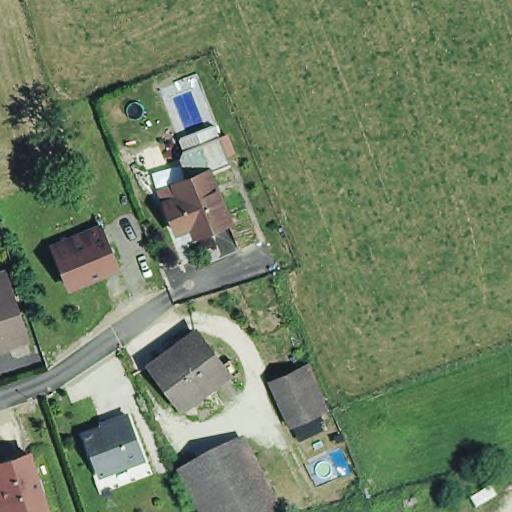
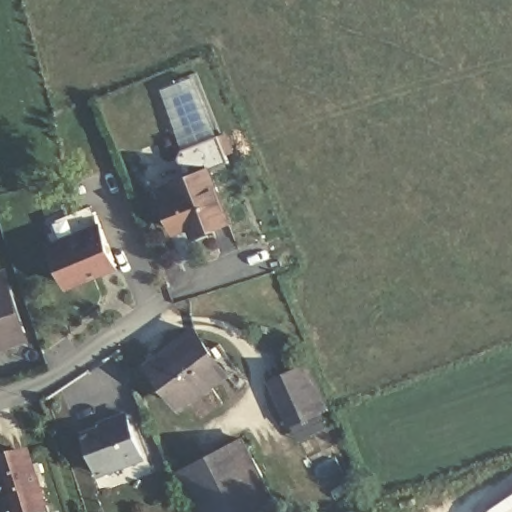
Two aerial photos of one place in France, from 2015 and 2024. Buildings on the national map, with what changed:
unchanged [(233,222),(200,234),(196,224),(180,230),(169,202),(164,189),(180,182),(213,170),(233,222)]
unchanged [(102,275),(97,277),(69,288),(55,255),(81,245),(79,239),(85,236),(101,231),(114,264),(117,269),(102,275)]
unchanged [(30,341),(0,351),(0,284),(10,281),(30,341)]
unchanged [(190,331),(220,372),(176,405),(146,363),(190,331)]
unchanged [(328,406),(300,419),(280,375),(309,362),(328,406)]
unchanged [(97,472),(82,433),(112,422),(110,419),(127,413),(139,446),(142,456),(130,460),(97,472)]
unchanged [(177,473),(242,440),(280,512),(197,512),(177,473)]
unchanged [(39,511),(36,512),(2,512),(0,507),(0,465),(23,458),(39,511)]

